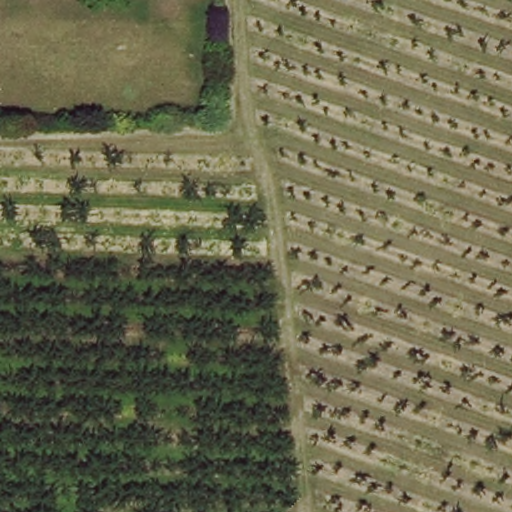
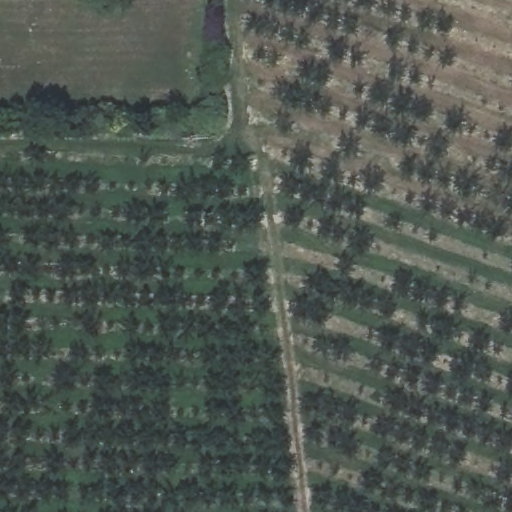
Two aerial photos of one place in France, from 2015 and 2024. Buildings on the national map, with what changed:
[]

